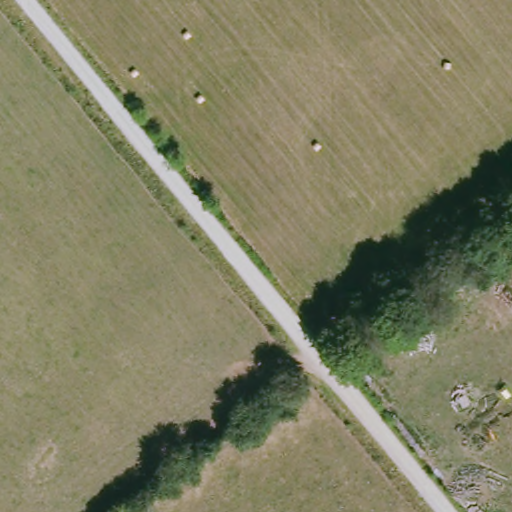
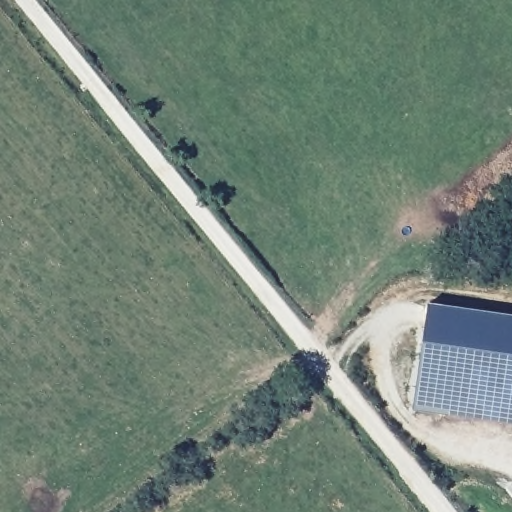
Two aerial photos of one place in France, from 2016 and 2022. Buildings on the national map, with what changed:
new [(426,304),(512,316),(512,424),(412,411),(426,304)]

